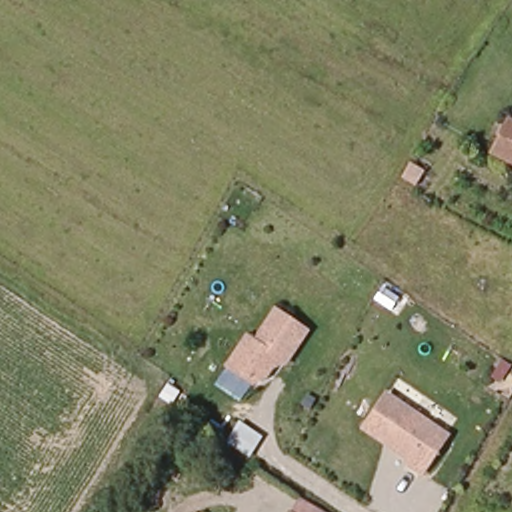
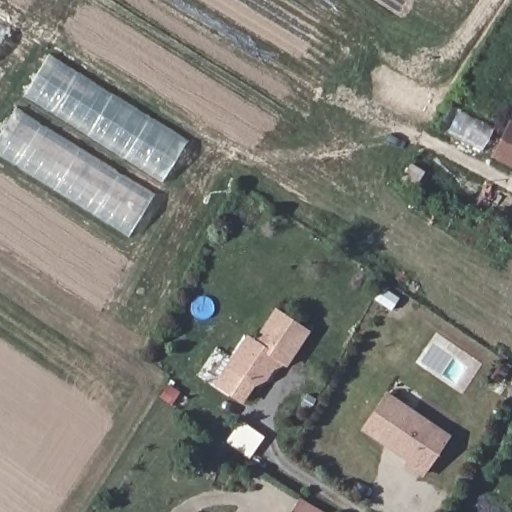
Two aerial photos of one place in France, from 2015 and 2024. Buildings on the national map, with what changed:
new [(0,38),(0,26),(6,29),(0,38)]
new [(49,53),(186,141),(159,185),(22,96),(49,53)]
new [(127,237),(0,158),(0,131),(15,108),(154,195),(127,237)]
unchanged [(512,165),(497,157),(512,128),(512,165)]
unchanged [(247,335),(255,340),(276,308),(306,329),(284,362),(277,356),(263,376),(252,382),(227,365),(247,335)]
unchanged [(386,394),(447,436),(422,474),(407,464),(410,460),(362,428),(386,394)]

